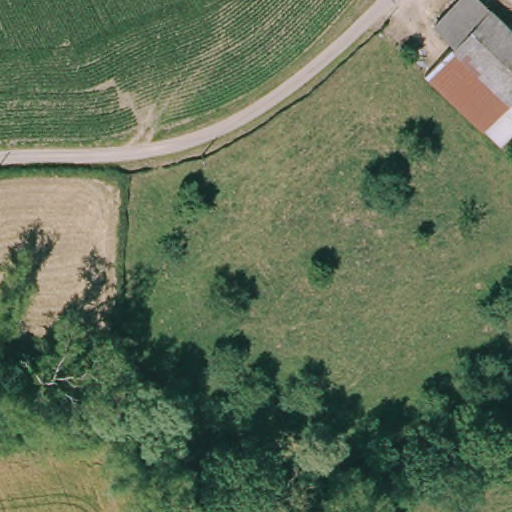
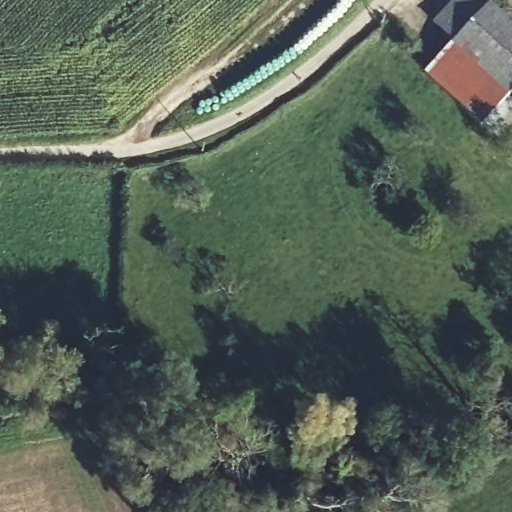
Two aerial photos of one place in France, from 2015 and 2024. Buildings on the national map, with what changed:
unchanged [(448,39),(483,6),(486,2),(487,4),(491,7),(512,27),(512,104),(471,62),(448,39)]
unchanged [(471,62),(512,104),(512,126),(496,141),(443,89),(471,62)]

